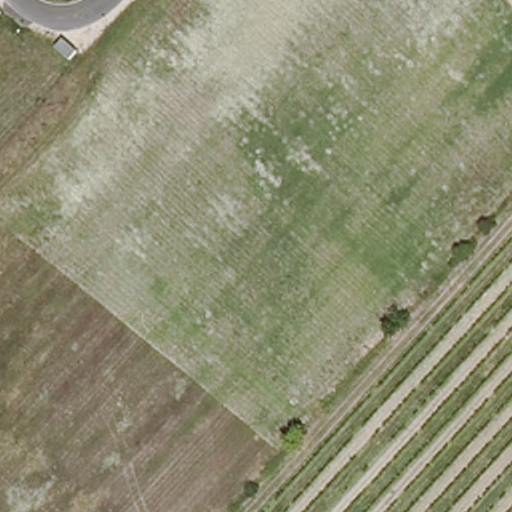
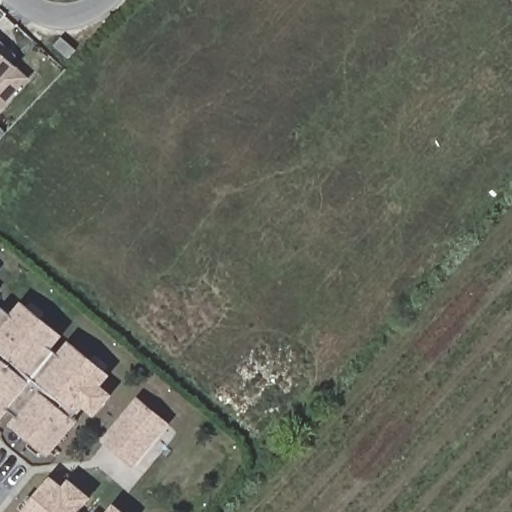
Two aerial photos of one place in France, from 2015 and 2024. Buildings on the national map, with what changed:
new [(14,65),(19,69),(29,78),(0,110),(0,39),(2,40),(18,56),(14,65)]
new [(98,417),(88,407),(78,419),(81,422),(52,456),(12,425),(19,417),(12,411),(4,422),(0,419),(0,313),(5,308),(13,315),(24,303),(65,338),(55,350),(60,355),(72,342),(112,376),(104,386),(115,396),(98,417)]
new [(135,468),(103,442),(139,398),(172,425),(135,468)]
new [(93,499),(82,512),(23,512),(54,476),(66,486),(73,479),(93,499)]
new [(125,512),(111,512),(117,505),(125,512)]

